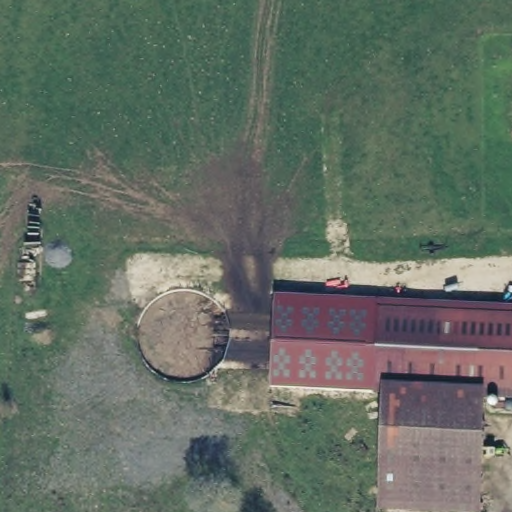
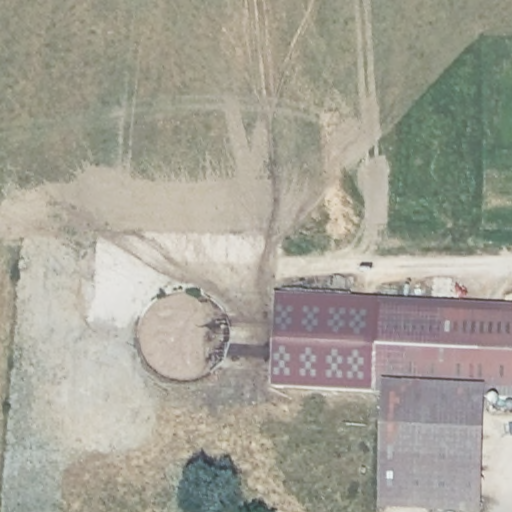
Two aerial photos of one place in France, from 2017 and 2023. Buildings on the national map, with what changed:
unchanged [(381,315),(380,352),(380,362),(379,392),(271,387),(274,301),(382,307),(381,315)]
unchanged [(512,371),(380,362),(382,307),(512,315),(512,371)]
unchanged [(512,371),(512,393),(478,388),(476,512),(378,512),(380,362),(512,371)]

